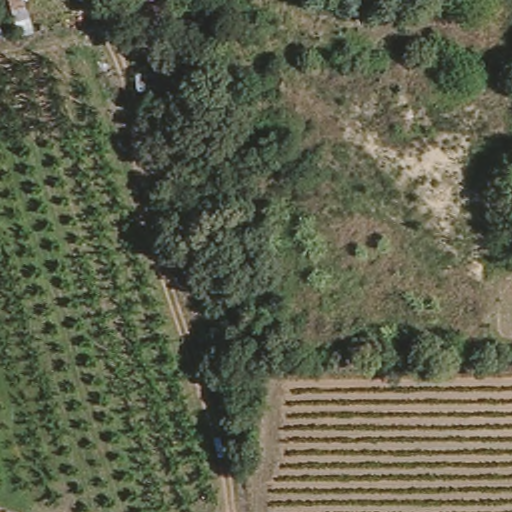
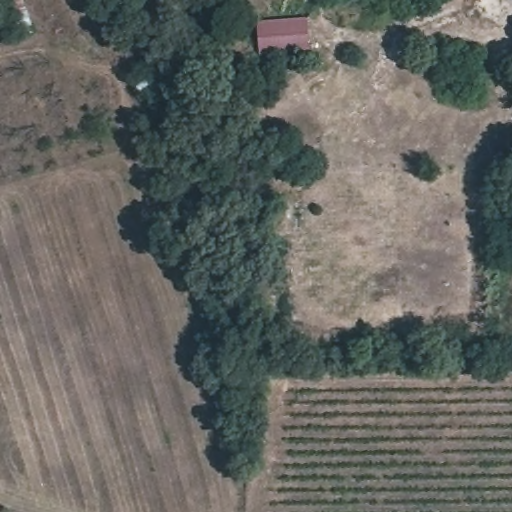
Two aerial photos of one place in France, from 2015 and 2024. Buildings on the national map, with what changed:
new [(307,17),(310,51),(260,55),(257,21),(307,17)]

